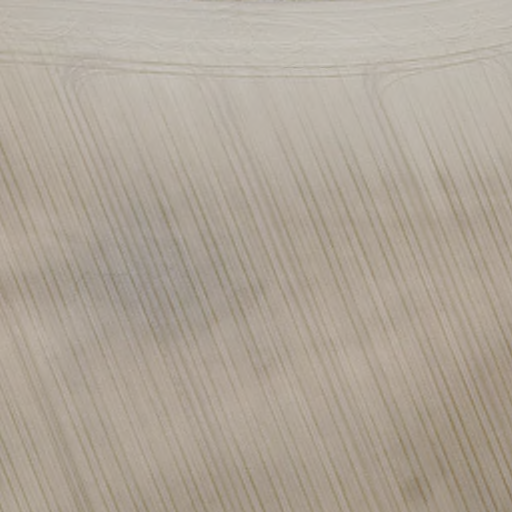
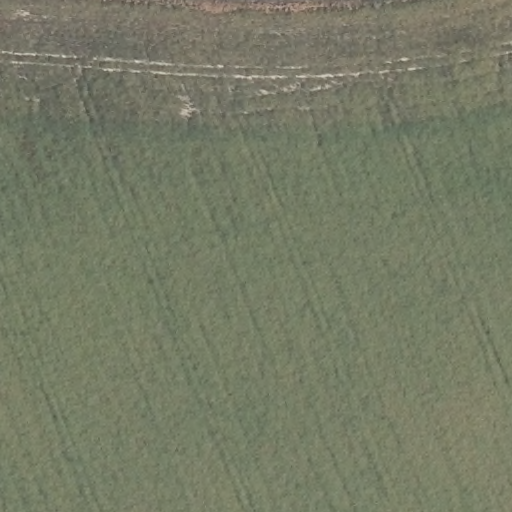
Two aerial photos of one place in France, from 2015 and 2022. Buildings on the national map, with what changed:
[]

